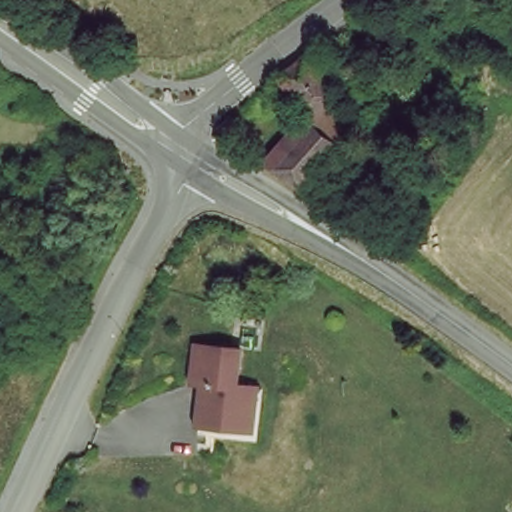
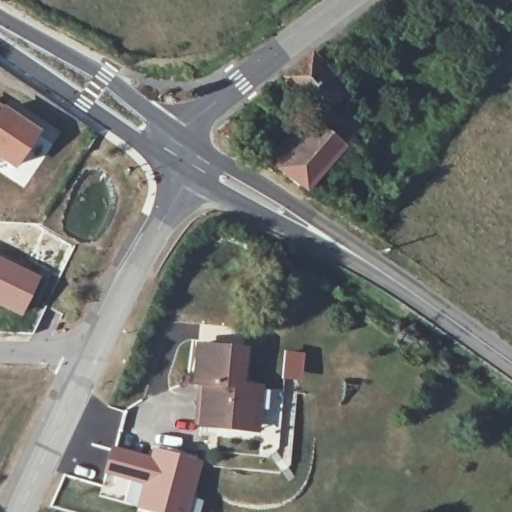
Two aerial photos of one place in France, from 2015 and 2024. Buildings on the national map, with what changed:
unchanged [(297,160),(323,134),(325,115),(290,76),(316,54),(372,121),(312,190),(291,176),(297,160)]
new [(14,164),(0,155),(0,110),(35,133),(14,164)]
new [(21,317),(0,307),(0,257),(40,275),(21,317)]
unchanged [(251,428),(241,427),(197,419),(203,378),(194,376),(200,340),(244,348),(239,383),(248,385),(258,386),(251,428)]
new [(149,455),(152,446),(203,460),(191,512),(151,512),(132,506),(138,485),(104,475),(111,445),(149,455)]

